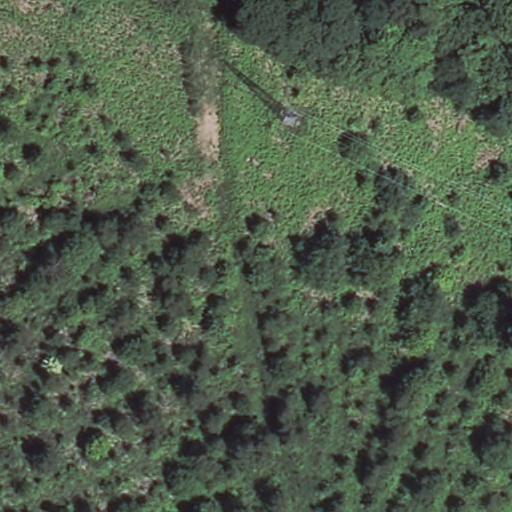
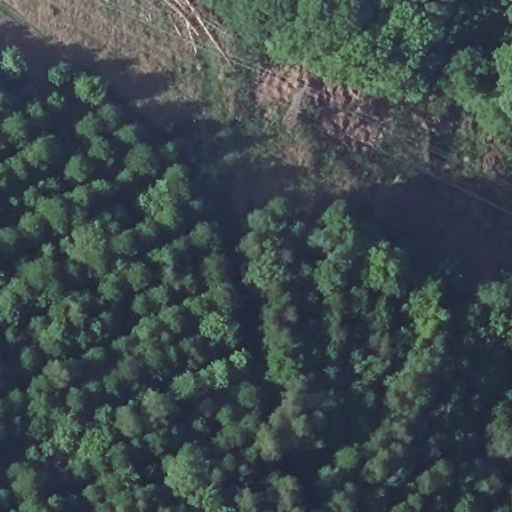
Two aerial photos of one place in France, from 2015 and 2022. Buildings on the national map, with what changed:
[]

